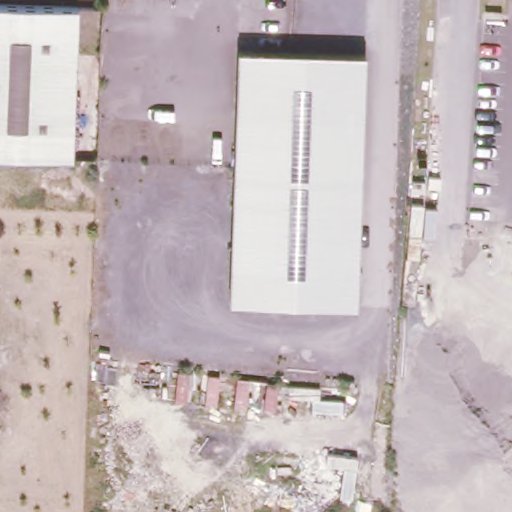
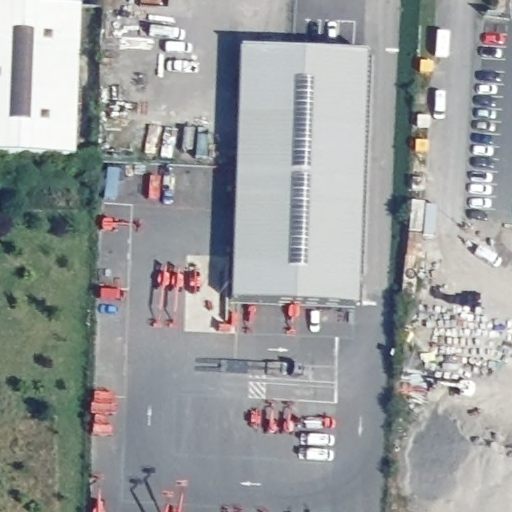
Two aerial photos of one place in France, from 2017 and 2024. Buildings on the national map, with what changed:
unchanged [(74,14),(67,162),(0,159),(0,9),(74,14)]
unchanged [(235,54),(363,58),(353,307),(227,303),(235,54)]

